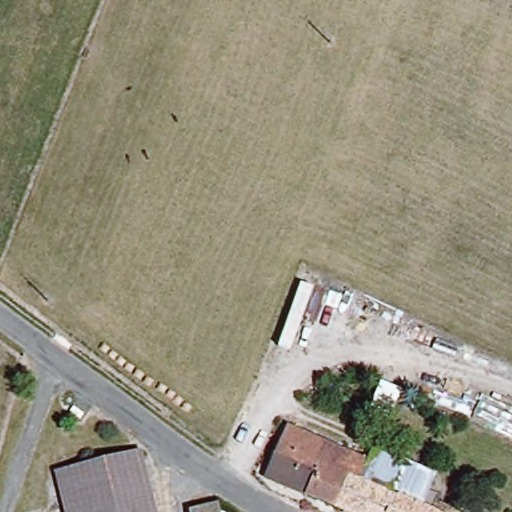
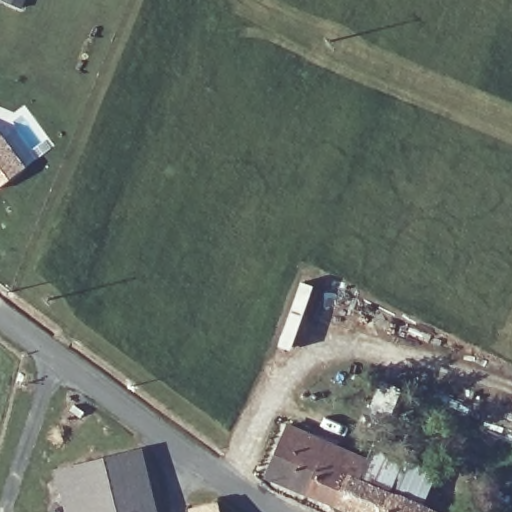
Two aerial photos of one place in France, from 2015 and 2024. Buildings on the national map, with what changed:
new [(26,166),(0,185),(0,135),(1,135),(26,166)]
unchanged [(356,476),(345,471),(335,503),(303,489),(304,482),(272,465),(286,433),(318,447),(321,441),(363,459),(356,476)]
unchanged [(82,461),(120,452),(140,451),(148,488),(92,502),(82,461)]
unchanged [(94,512),(66,512),(55,468),(82,461),(92,502),(94,512)]
unchanged [(345,471),(356,476),(428,508),(432,498),(461,512),(355,512),(335,503),(345,471)]
unchanged [(148,488),(154,512),(94,512),(92,502),(148,488)]

